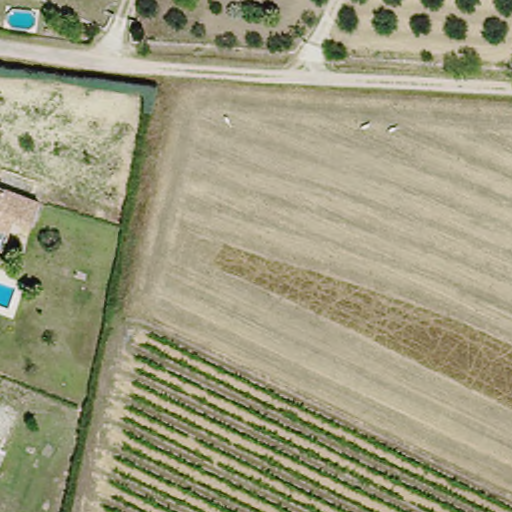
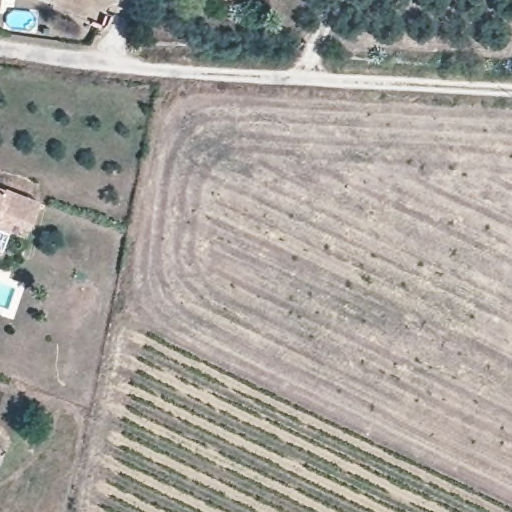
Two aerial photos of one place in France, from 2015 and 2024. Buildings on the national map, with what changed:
unchanged [(34,229),(18,222),(13,234),(0,229),(0,189),(43,206),(34,229)]
unchanged [(0,459),(0,430),(10,434),(0,459)]

